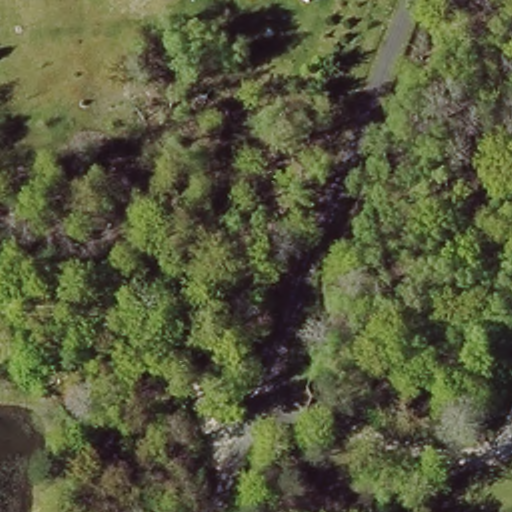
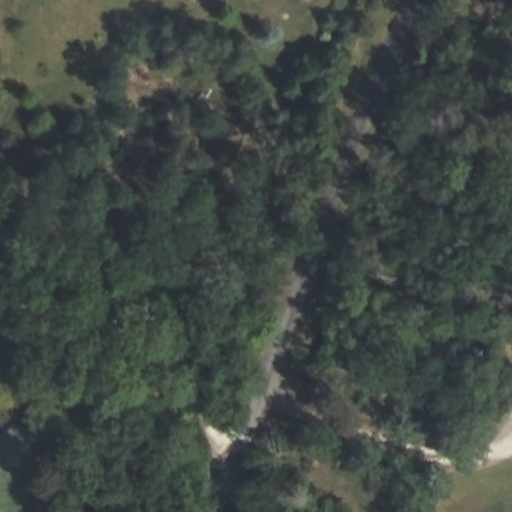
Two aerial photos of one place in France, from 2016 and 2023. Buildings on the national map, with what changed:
unchanged [(308,0),(310,0),(310,1),(308,0)]

